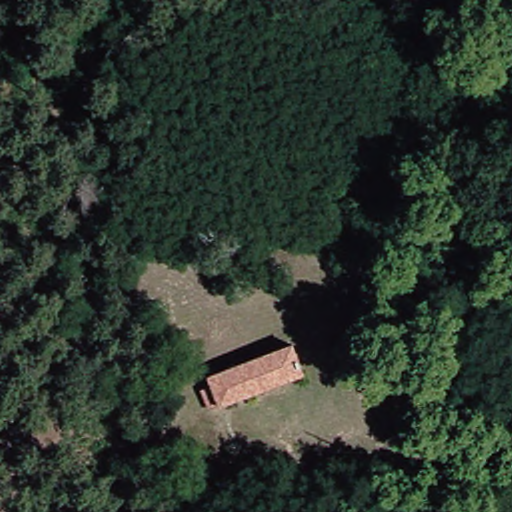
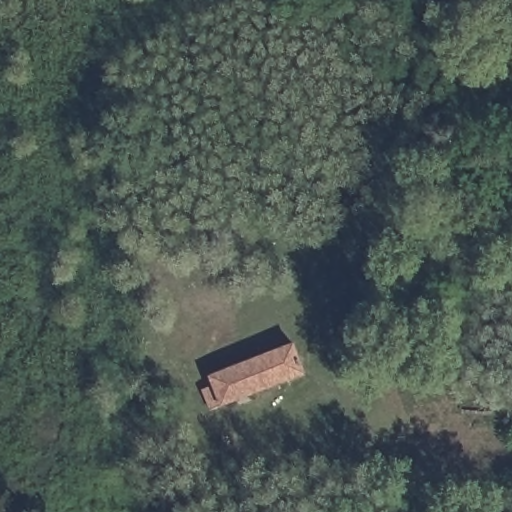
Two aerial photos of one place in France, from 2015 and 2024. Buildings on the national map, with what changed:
unchanged [(210,366),(308,324),(326,367),(227,407),(225,401),(197,412),(188,389),(214,377),(210,366)]

